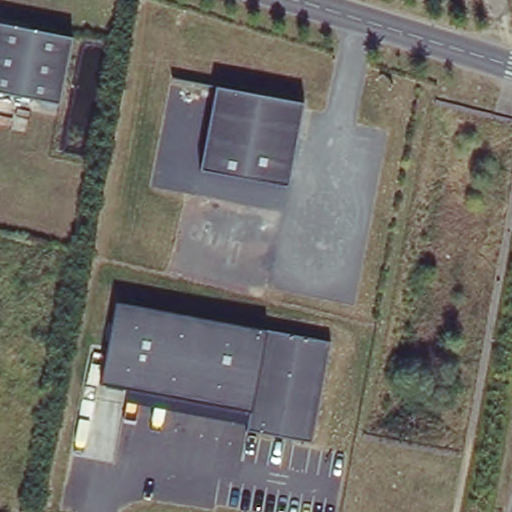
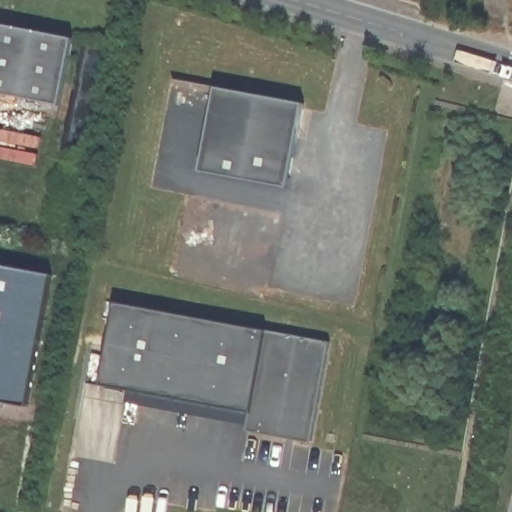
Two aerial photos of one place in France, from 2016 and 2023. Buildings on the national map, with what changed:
unchanged [(74,37),(61,102),(0,91),(0,24),(74,37)]
unchanged [(301,108),(286,191),(201,174),(219,91),(301,108)]
new [(51,266),(30,396),(0,390),(0,255),(51,266)]
unchanged [(312,439),(247,429),(248,425),(126,402),(129,390),(101,385),(118,303),(267,330),(330,342),(312,439)]

